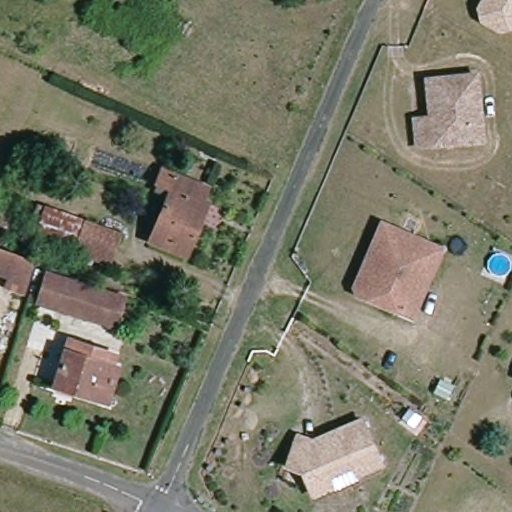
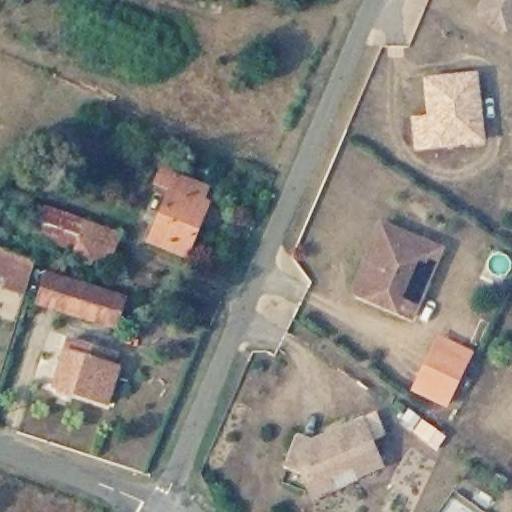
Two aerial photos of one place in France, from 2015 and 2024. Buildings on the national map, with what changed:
unchanged [(504,31),(485,20),(482,9),(487,0),(512,0),(512,29),(504,31)]
unchanged [(418,119),(433,118),(430,79),(469,75),(479,74),(486,139),(476,140),(420,146),(418,119)]
unchanged [(185,255),(149,240),(169,190),(155,184),(161,169),(206,188),(201,200),(206,203),(185,255)]
unchanged [(75,251),(35,237),(45,209),(85,222),(75,251)]
unchanged [(108,262),(75,251),(85,222),(118,234),(108,262)]
unchanged [(368,267),(385,228),(428,246),(445,253),(426,297),(415,322),(360,299),(358,292),(368,267)]
unchanged [(1,287),(5,276),(0,274),(0,248),(34,261),(24,295),(1,287)]
unchanged [(115,326),(37,303),(46,274),(123,297),(115,326)]
new [(474,351),(447,408),(410,391),(437,334),(474,351)]
unchanged [(106,403),(54,386),(69,339),(116,355),(112,365),(117,367),(106,403)]
unchanged [(311,500),(305,486),(301,477),(286,471),(297,442),(310,447),(332,437),(360,425),(380,470),(356,480),(353,472),(330,482),(322,479),(328,493),(311,500)]

